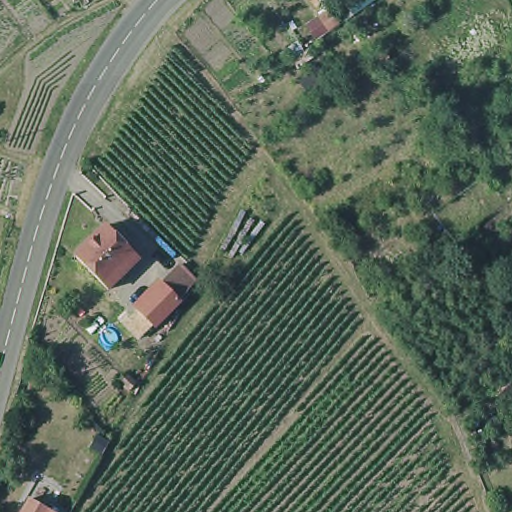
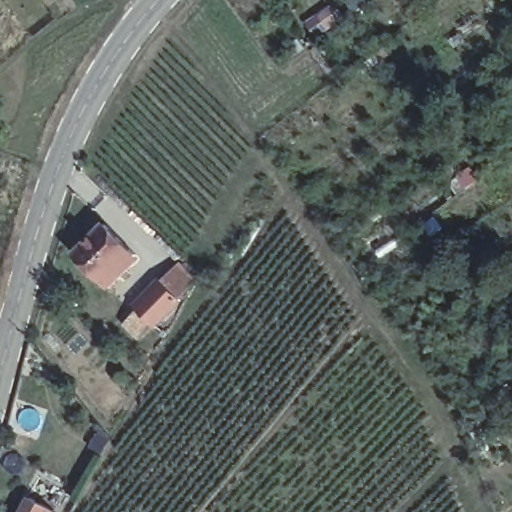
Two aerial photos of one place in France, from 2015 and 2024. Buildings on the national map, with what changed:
unchanged [(139,249),(127,260),(131,265),(111,283),(79,249),(110,220),(139,249)]
unchanged [(136,305),(162,280),(160,276),(178,258),(193,275),(177,295),(152,321),(136,305)]
unchanged [(58,509),(57,512),(25,512),(34,495),(58,509)]

